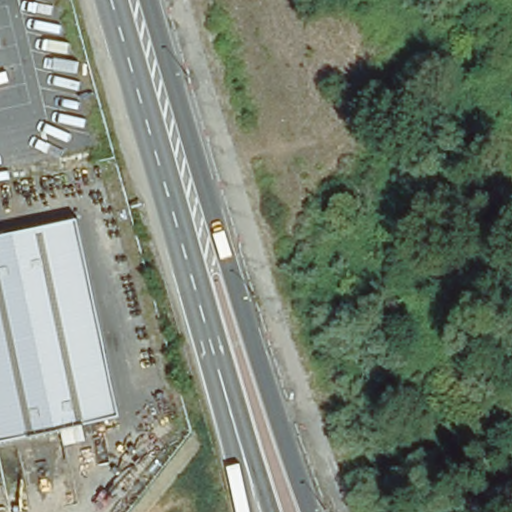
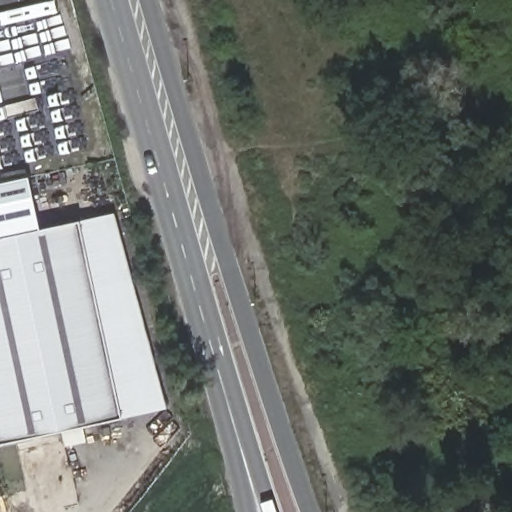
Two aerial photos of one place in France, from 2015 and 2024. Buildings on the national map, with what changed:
new [(28,176),(39,228),(0,237),(0,182),(28,176)]
new [(114,212),(166,407),(121,417),(120,412),(80,220),(114,212)]
unchanged [(80,220),(120,412),(0,439),(0,237),(80,220)]

